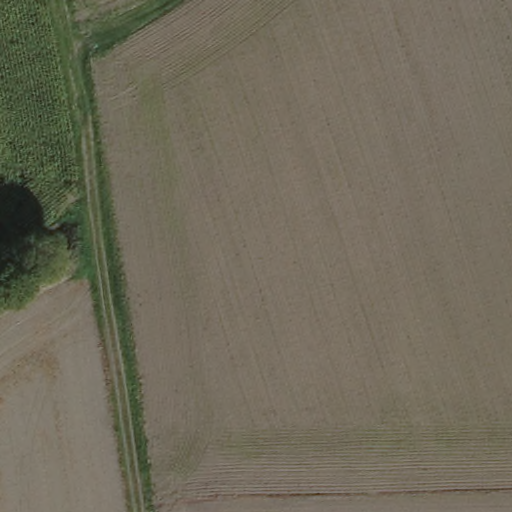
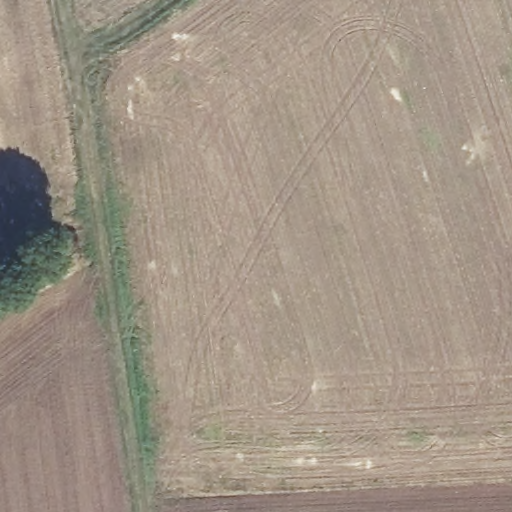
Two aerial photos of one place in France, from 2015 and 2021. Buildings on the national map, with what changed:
[]

